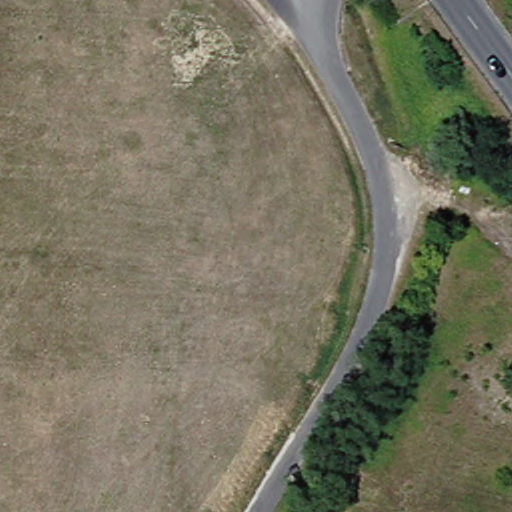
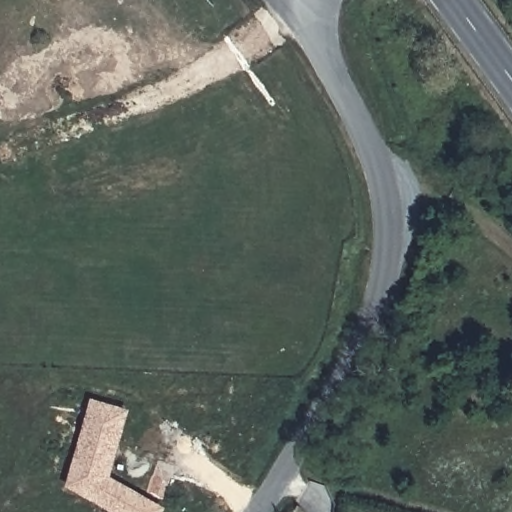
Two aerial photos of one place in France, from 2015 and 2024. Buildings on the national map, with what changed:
new [(90,397),(130,409),(110,475),(166,508),(164,512),(113,512),(65,485),(90,397)]

